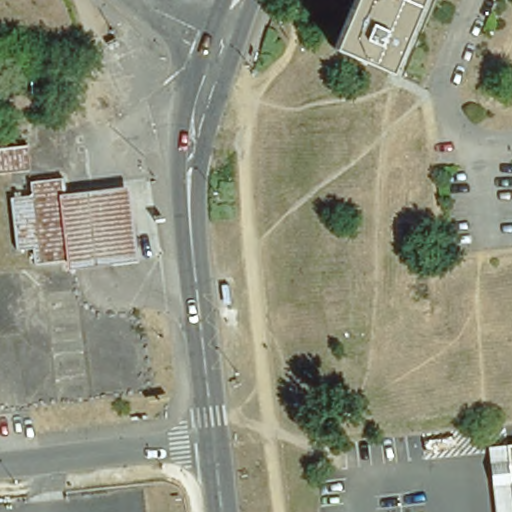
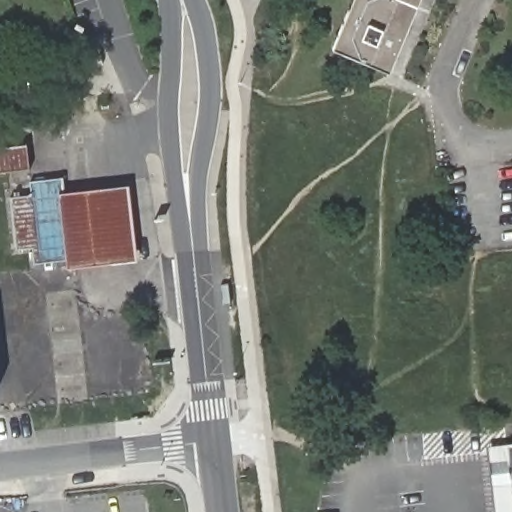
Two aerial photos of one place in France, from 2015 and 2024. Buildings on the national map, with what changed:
unchanged [(341,59),(335,56),(358,0),(426,0),(406,47),(401,61),(393,81),(381,76),(341,59)]
unchanged [(22,151),(25,176),(0,179),(0,153),(22,151)]
unchanged [(67,267),(27,272),(25,255),(12,257),(5,202),(27,201),(25,187),(57,184),(59,200),(67,267)]
unchanged [(123,193),(132,267),(68,275),(67,267),(59,200),(123,193)]
unchanged [(512,477),(512,512),(497,512),(491,450),(509,448),(512,472),(512,477)]
unchanged [(509,448),(512,448),(512,477),(512,472),(509,448)]

